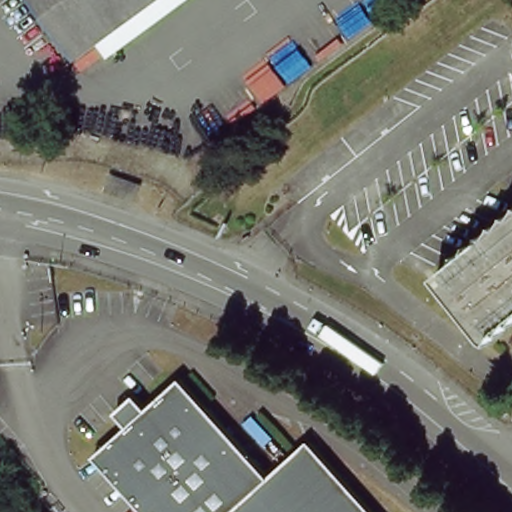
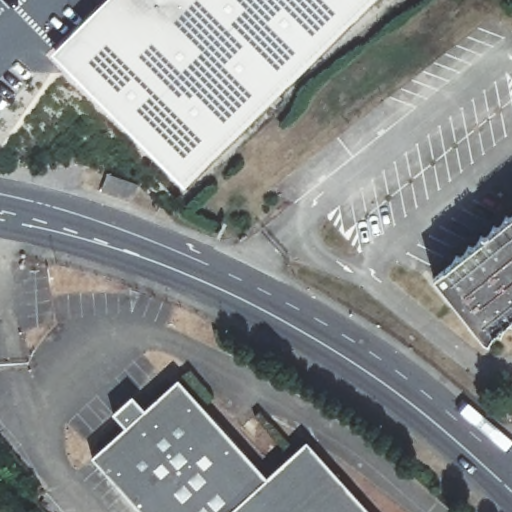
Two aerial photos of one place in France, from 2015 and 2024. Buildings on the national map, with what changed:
demolished [(34,0),(64,0),(45,15),(34,0)]
demolished [(76,56),(45,15),(64,0),(151,0),(76,56)]
new [(187,187),(71,67),(71,40),(112,0),(377,0),(187,187)]
unchanged [(103,180),(131,187),(128,196),(99,187),(103,180)]
unchanged [(512,206),(512,309),(484,332),(431,269),(512,206)]
unchanged [(182,381),(269,477),(310,443),(372,512),(144,512),(96,457),(182,381)]

